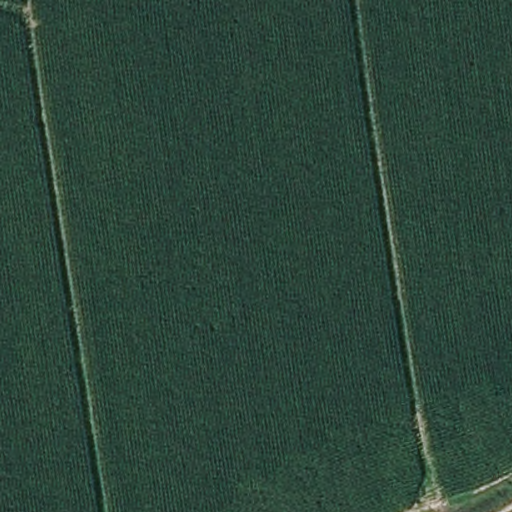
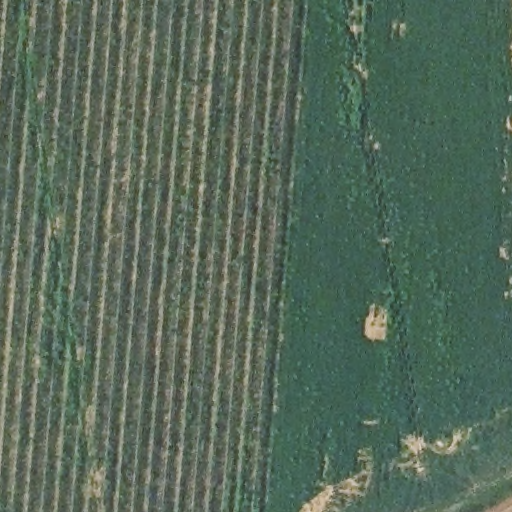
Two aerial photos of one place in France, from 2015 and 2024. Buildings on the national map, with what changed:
[]

